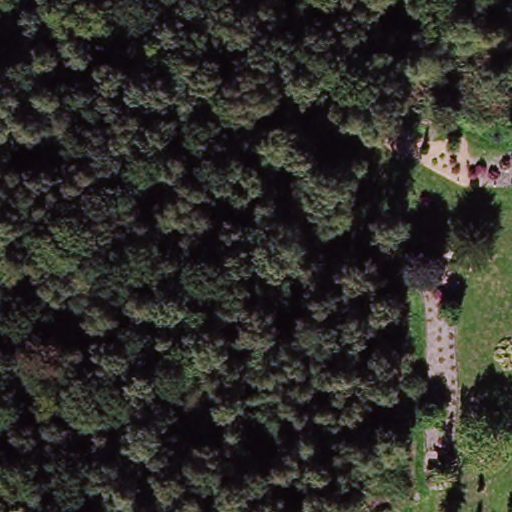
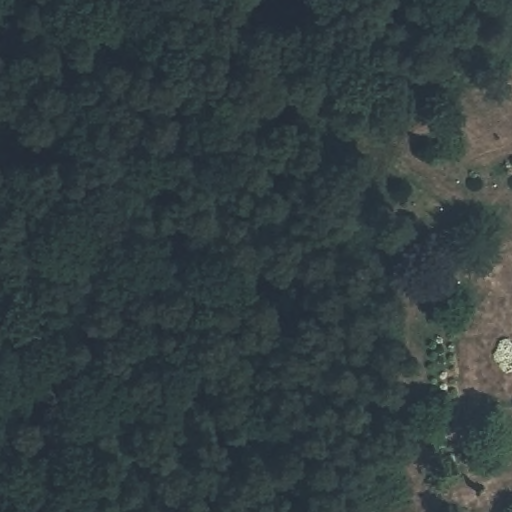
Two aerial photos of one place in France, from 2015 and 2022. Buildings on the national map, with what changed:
[]

